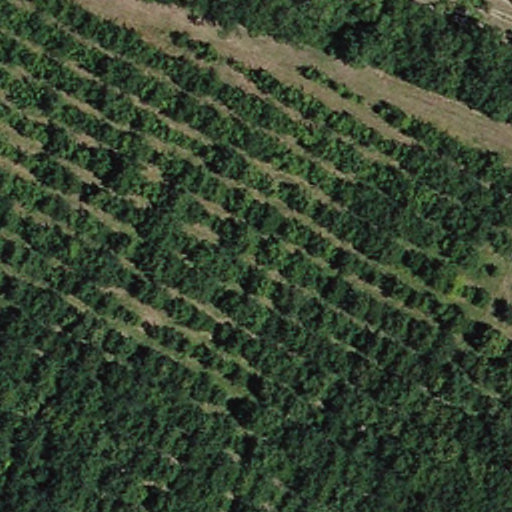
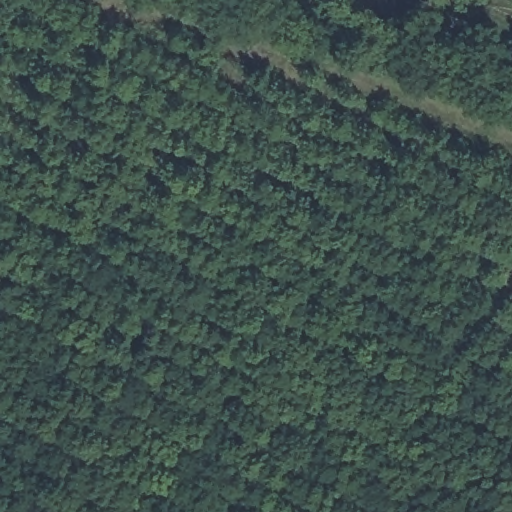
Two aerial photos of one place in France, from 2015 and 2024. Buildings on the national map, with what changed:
[]

